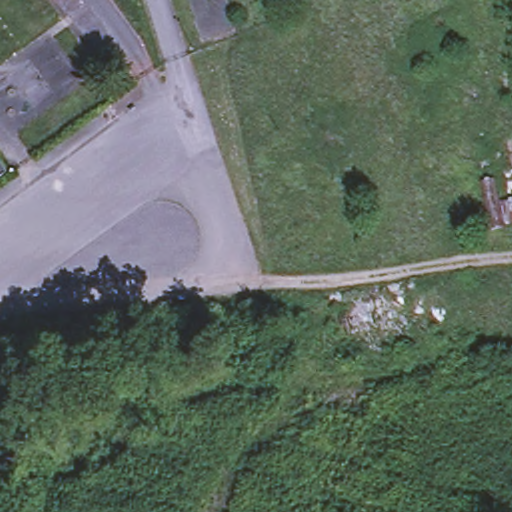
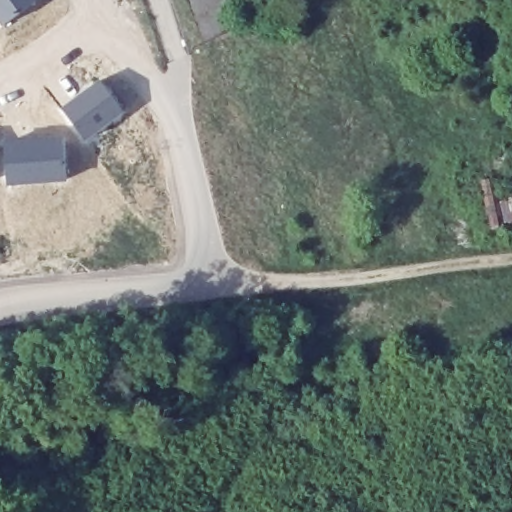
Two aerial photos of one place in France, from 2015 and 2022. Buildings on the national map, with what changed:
new [(2,26),(0,23),(0,0),(39,0),(2,26)]
new [(100,81),(125,114),(84,142),(62,109),(100,81)]
new [(64,139),(67,183),(6,186),(3,142),(64,139)]
demolished [(0,171),(0,169),(1,170),(0,171)]
unchanged [(489,202),(512,195),(512,225),(492,229),(489,202)]

